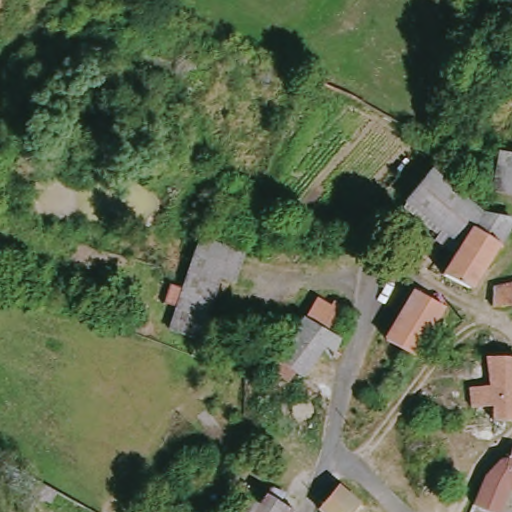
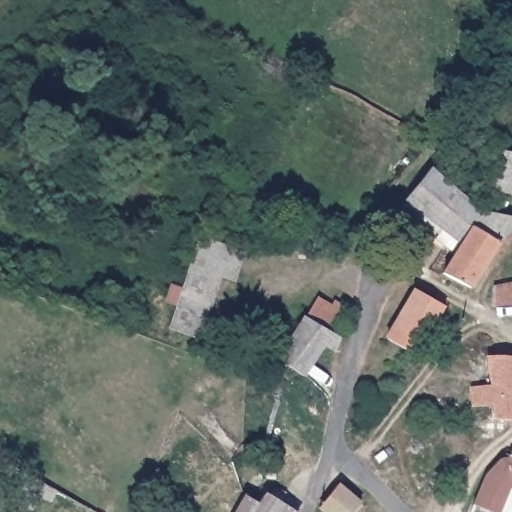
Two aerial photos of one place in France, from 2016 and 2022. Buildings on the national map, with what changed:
unchanged [(501,149),(512,152),(512,198),(495,194),(501,149)]
unchanged [(496,220),(512,223),(512,242),(478,291),(448,272),(460,257),(437,239),(441,235),(424,217),(422,215),(412,206),(417,200),(414,196),(447,170),(472,196),(496,220)]
unchanged [(230,252),(246,258),(237,282),(222,277),(202,340),(175,329),(205,239),(231,247),(230,252)]
unchanged [(495,307),(492,285),(512,281),(512,308),(495,307)]
unchanged [(452,315),(422,358),(391,341),(422,292),(452,315)]
unchanged [(308,332),(320,310),(327,313),(332,303),(352,313),(338,350),(308,332)]
unchanged [(347,355),(340,368),(326,361),(308,389),(275,370),(301,327),(308,332),(338,350),(347,355)]
unchanged [(512,361),(512,425),(502,426),(492,425),(492,407),(473,407),(472,387),(492,386),(490,359),(512,361)]
unchanged [(477,502),(489,472),(505,452),(511,455),(512,453),(512,494),(504,512),(497,512),(477,502)]
unchanged [(359,505),(354,512),(319,512),(340,487),(359,505)]
unchanged [(277,491),(295,502),(310,511),(309,512),(264,512),(277,491)]
unchanged [(248,506),(260,512),(245,512),(248,506)]

